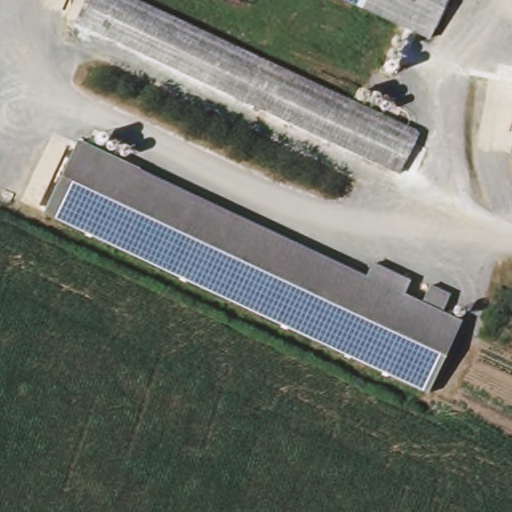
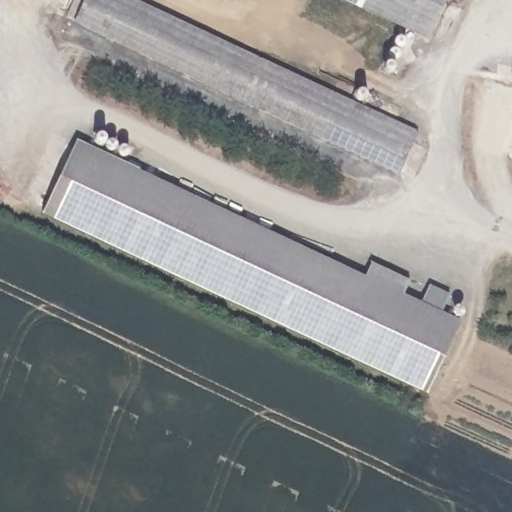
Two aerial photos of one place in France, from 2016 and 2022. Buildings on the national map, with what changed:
unchanged [(79,12),(86,0),(149,0),(415,136),(396,174),(79,12)]
unchanged [(431,41),(349,0),(450,0),(431,41)]
unchanged [(512,120),(512,156),(505,154),(512,120)]
unchanged [(369,259),(408,278),(399,295),(465,327),(431,399),(43,219),(79,144),(360,277),(369,259)]

